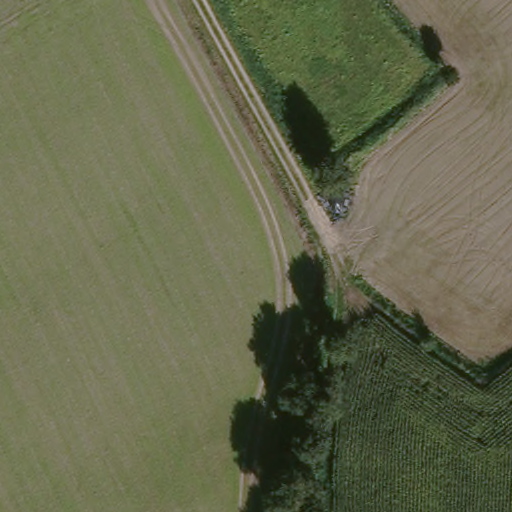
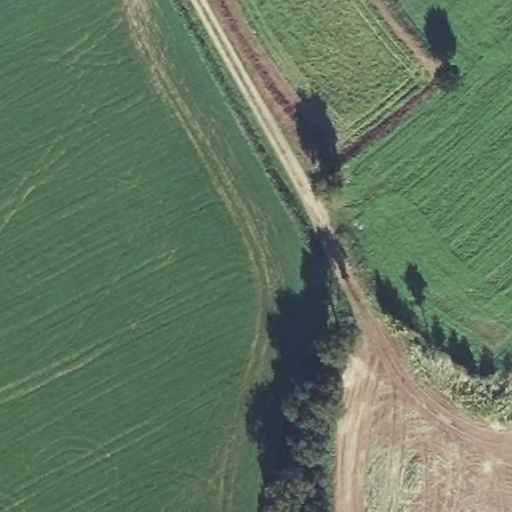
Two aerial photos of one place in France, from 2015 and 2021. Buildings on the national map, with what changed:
[]

